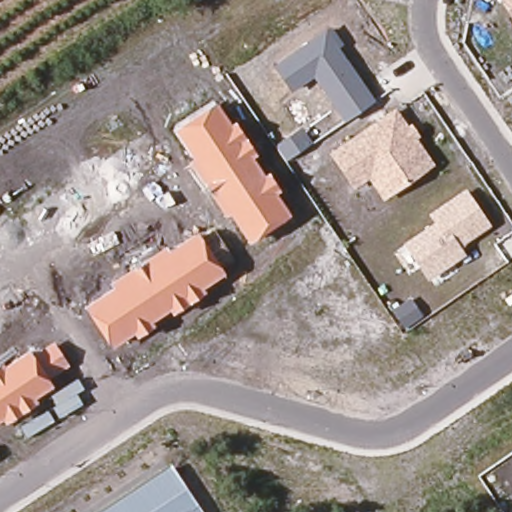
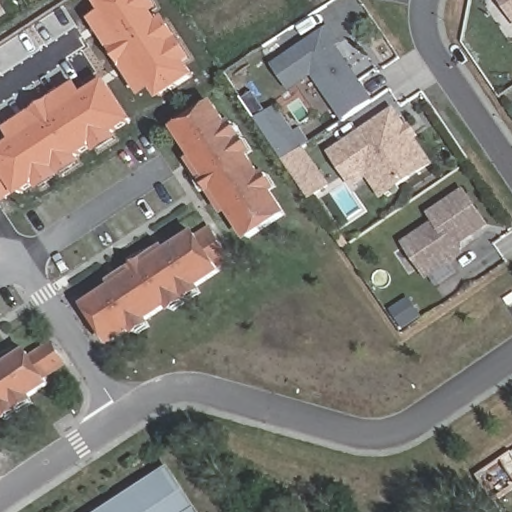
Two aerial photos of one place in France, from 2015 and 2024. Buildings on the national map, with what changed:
new [(91,21),(102,13),(96,2),(99,0),(156,0),(162,9),(156,12),(162,22),(167,18),(195,61),(190,64),(198,76),(160,101),(154,91),(143,98),(91,21)]
unchanged [(512,17),(501,0),(512,0),(512,17)]
unchanged [(346,122),(317,76),(289,94),(274,67),(332,28),(343,43),(340,46),(375,101),(346,122)]
new [(121,140),(98,155),(94,148),(80,158),(84,165),(42,192),(37,186),(19,197),(17,194),(4,203),(0,196),(0,150),(13,142),(6,130),(78,83),(85,93),(108,80),(135,122),(117,134),(121,140)]
new [(286,160),(257,119),(244,99),(253,93),(254,91),(268,112),(277,106),(295,134),(301,130),(310,143),(303,148),(327,184),(310,196),(286,160)]
unchanged [(251,243),(231,214),(224,218),(190,162),(195,158),(177,130),(217,103),(230,123),(234,120),(257,153),(252,156),(263,173),(268,170),(280,191),(276,194),(291,217),(251,243)]
unchanged [(386,201),(369,178),(349,191),(325,153),(394,108),(406,124),(410,121),(420,137),(418,139),(435,165),(386,201)]
unchanged [(461,246),(464,254),(428,279),(403,245),(431,225),(426,217),(466,190),(490,224),(461,246)]
unchanged [(202,288),(204,292),(171,315),(168,310),(153,321),(156,327),(135,340),(130,334),(110,347),(83,305),(113,285),(110,278),(166,245),(169,249),(200,232),(203,236),(215,230),(228,253),(218,260),(226,273),(202,288)]
unchanged [(28,349),(33,357),(54,342),(67,363),(46,377),(49,386),(32,395),(32,405),(9,424),(4,419),(0,421),(0,368),(28,349)]
unchanged [(199,512),(103,512),(169,469),(199,512)]

